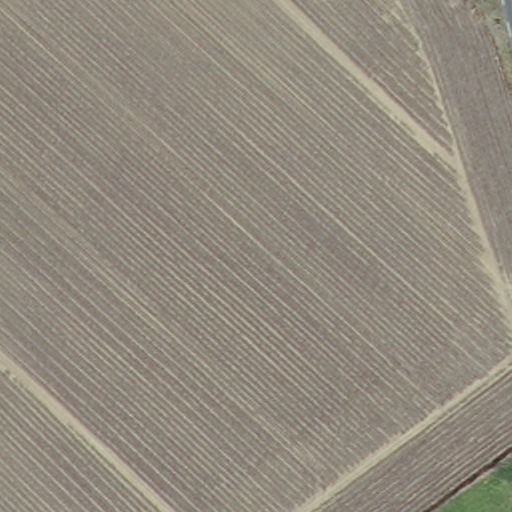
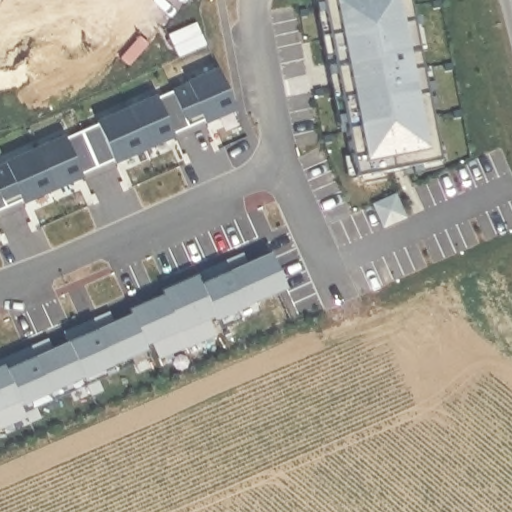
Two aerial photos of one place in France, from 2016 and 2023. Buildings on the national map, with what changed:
new [(321,0),(409,0),(418,52),(425,84),(440,162),(355,178),(340,100),(333,68),(321,0)]
new [(41,25),(75,102),(54,114),(20,35),(41,25)]
new [(204,122),(202,121),(171,134),(171,135),(112,161),(111,160),(80,175),(80,176),(21,204),(20,200),(0,209),(0,166),(4,164),(4,162),(63,136),(64,138),(95,124),(95,122),(155,96),(155,97),(186,84),(185,82),(215,69),(233,108),(204,122)]
new [(405,217),(383,227),(373,204),(395,195),(405,217)]
new [(0,359),(10,355),(15,364),(24,360),(30,371),(35,368),(26,347),(38,342),(42,352),(65,341),(61,331),(72,327),(76,336),(86,332),(91,343),(97,341),(88,320),(100,315),(104,323),(129,313),(126,307),(180,285),(178,280),(205,268),(210,278),(220,273),(225,285),(231,282),(222,261),(234,255),(238,265),(263,253),(279,288),(255,299),(259,307),(237,316),(235,315),(217,323),(213,315),(207,316),(215,333),(209,335),(212,344),(164,364),(160,355),(155,357),(149,341),(142,344),(151,366),(135,373),(130,364),(95,380),(99,390),(71,402),(67,391),(33,406),(37,416),(26,421),(27,424),(5,434),(1,426),(0,427),(0,364),(1,363),(0,359)]

